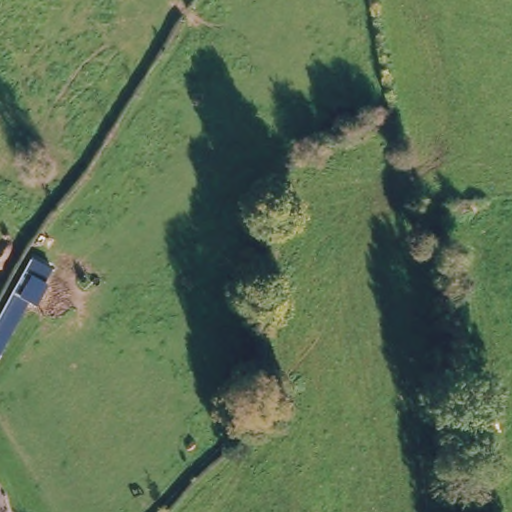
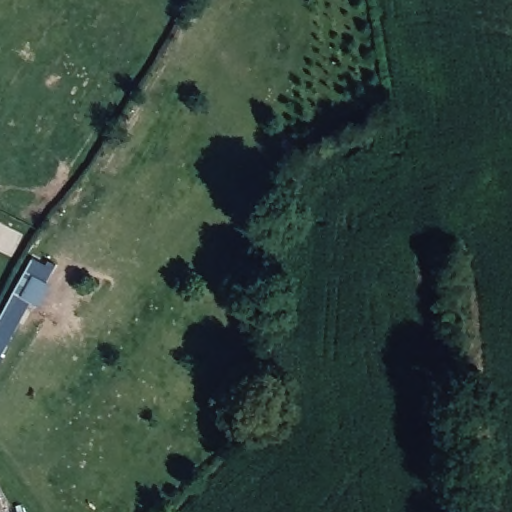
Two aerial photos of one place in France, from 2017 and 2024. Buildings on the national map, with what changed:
unchanged [(54,270),(47,283),(50,285),(37,307),(29,302),(0,355),(0,316),(32,258),(54,270)]

